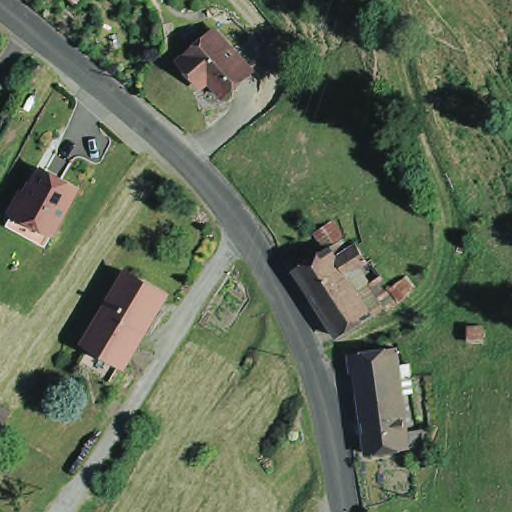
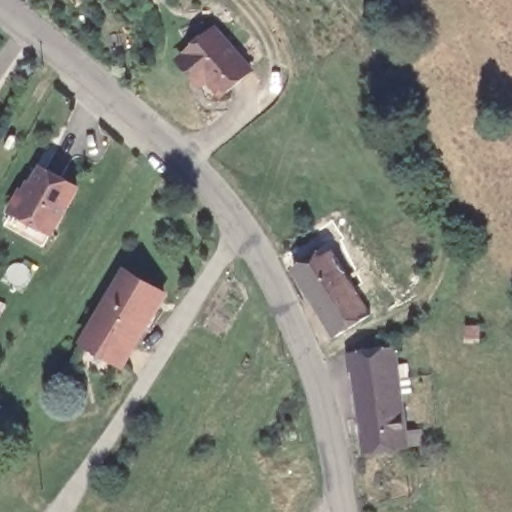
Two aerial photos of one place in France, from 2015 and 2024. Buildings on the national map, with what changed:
unchanged [(192,42),(209,27),(212,30),(247,68),(219,93),(203,77),(201,79),(195,72),(179,55),(192,42)]
unchanged [(54,233),(7,210),(25,177),(32,180),(41,162),(80,183),(54,233)]
unchanged [(7,227),(14,213),(54,233),(46,249),(7,227)]
unchanged [(295,273),(325,253),(314,236),(332,224),(342,241),(330,250),(336,260),(356,247),(367,265),(347,278),(352,285),(359,297),(372,317),(337,339),(325,319),(317,308),(295,273)]
unchanged [(85,350),(127,280),(165,303),(124,373),(85,350)]
unchanged [(397,305),(389,295),(401,283),(411,292),(397,305)]
unchanged [(352,402),(350,380),(349,375),(354,375),(352,362),(390,357),(392,375),(403,373),(404,384),(393,385),(395,397),(402,457),(361,462),(352,402)]

